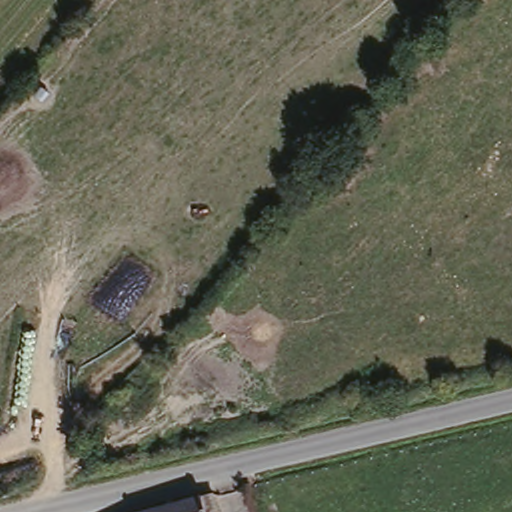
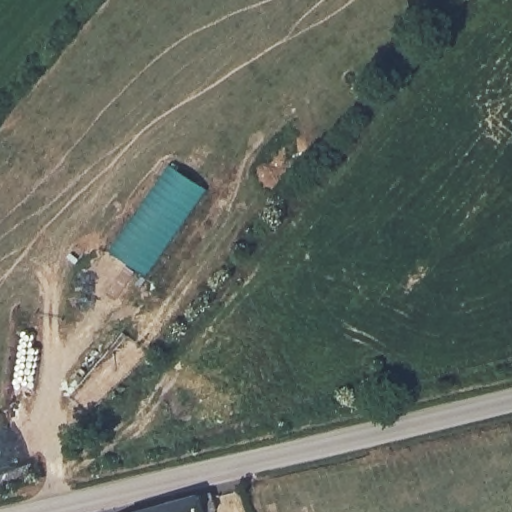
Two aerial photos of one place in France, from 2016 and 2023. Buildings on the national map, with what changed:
new [(209,195),(146,281),(111,259),(172,172),(209,195)]
unchanged [(213,509),(206,512),(144,512),(207,495),(213,509)]

